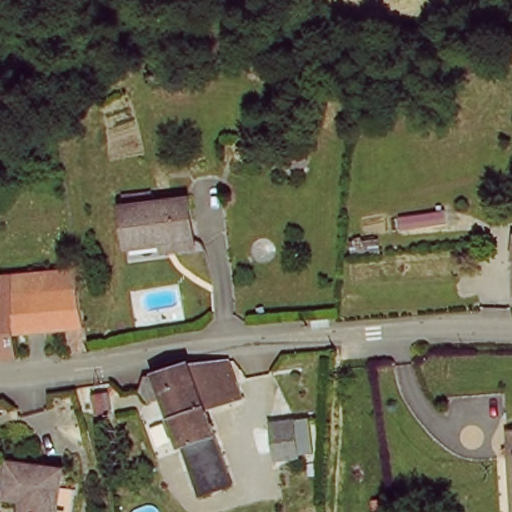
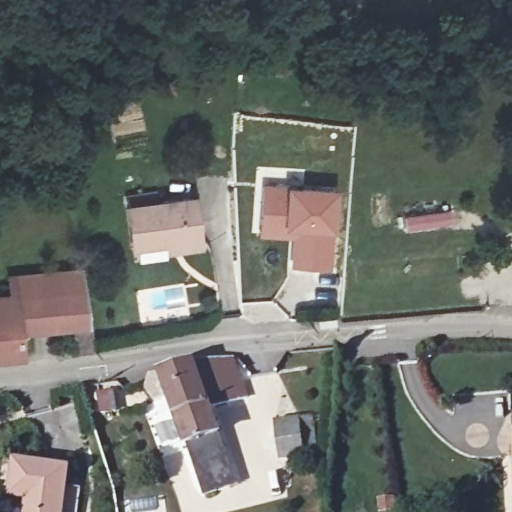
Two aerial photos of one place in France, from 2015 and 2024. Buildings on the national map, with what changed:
new [(260,180),(335,186),(331,268),(286,267),(288,238),(257,236),(260,180)]
unchanged [(173,249),(172,241),(138,246),(133,203),(200,193),(205,237),(206,244),(173,249)]
unchanged [(411,227),(457,219),(459,232),(413,240),(411,227)]
unchanged [(20,297),(18,275),(83,269),(91,324),(23,332),(20,297)]
unchanged [(25,356),(0,358),(0,299),(20,297),(23,332),(25,356)]
unchanged [(238,489),(196,503),(171,403),(155,407),(148,388),(153,378),(163,375),(176,370),(196,358),(228,362),(244,356),(259,394),(225,404),(238,489)]
unchanged [(302,451),(302,459),(281,458),(279,417),(316,414),(318,450),(302,451)]
unchanged [(15,494),(20,461),(76,468),(70,505),(69,512),(35,512),(36,499),(15,494)]

